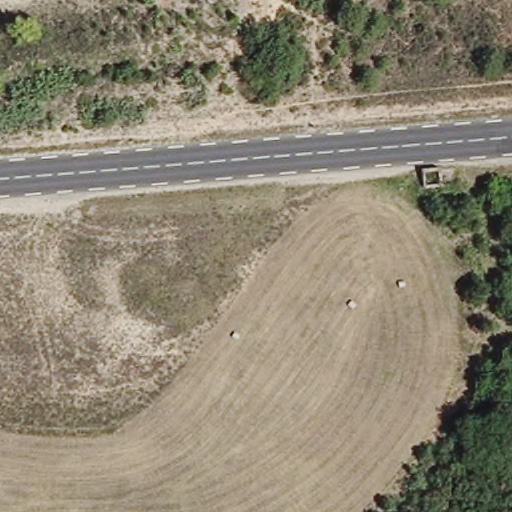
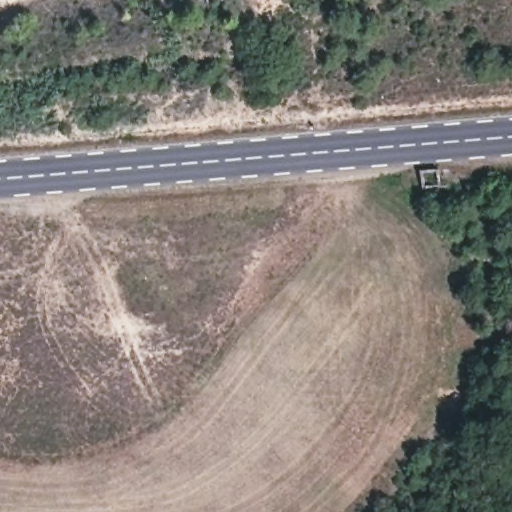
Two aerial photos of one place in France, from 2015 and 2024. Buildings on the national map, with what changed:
unchanged [(445,167),(447,173),(450,187),(420,190),(416,170),(445,167)]

